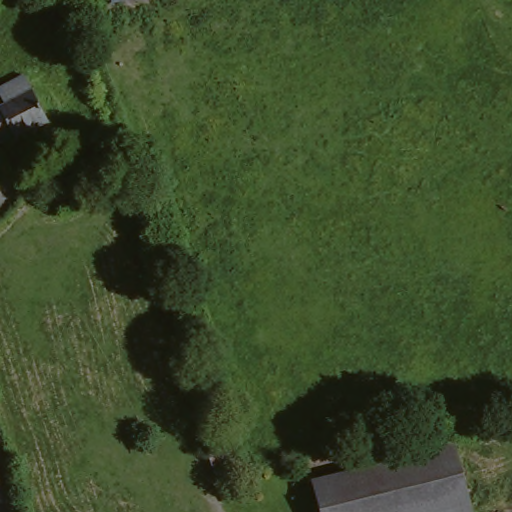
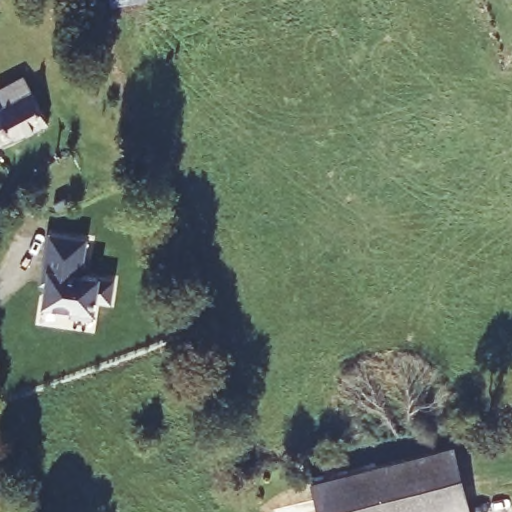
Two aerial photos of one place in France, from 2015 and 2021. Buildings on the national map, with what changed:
unchanged [(7,106),(1,91),(27,79),(50,129),(0,152),(0,109),(7,106)]
new [(47,231),(84,237),(78,272),(111,278),(108,300),(93,297),(90,315),(69,312),(70,307),(41,302),(44,280),(39,279),(41,267),(47,231)]
unchanged [(474,512),(323,512),(317,485),(457,450),(474,512)]

